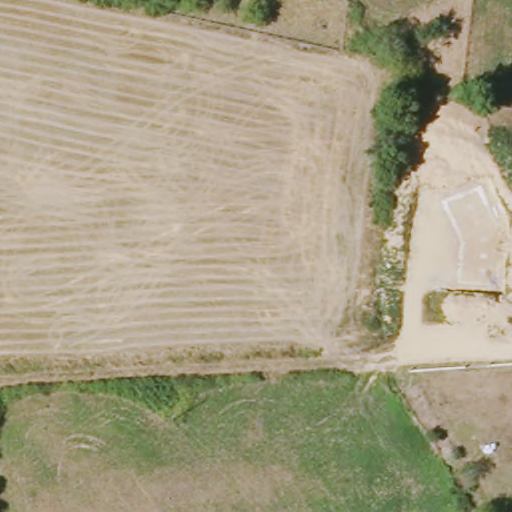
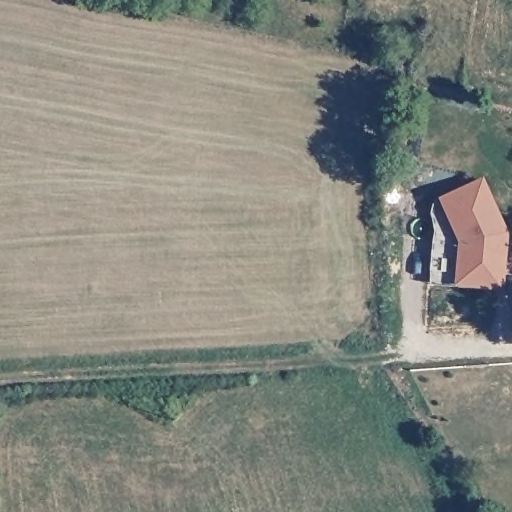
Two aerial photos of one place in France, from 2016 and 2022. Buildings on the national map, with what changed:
new [(482,178),(507,232),(501,290),(453,286),(457,241),(438,199),(482,178)]

